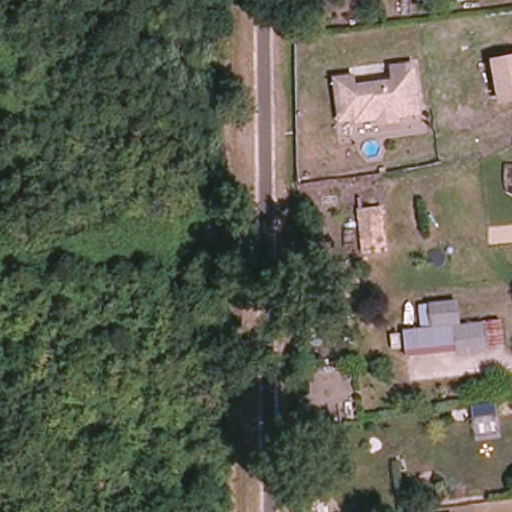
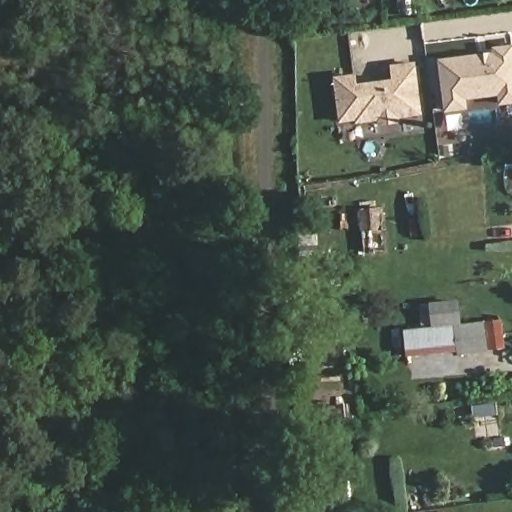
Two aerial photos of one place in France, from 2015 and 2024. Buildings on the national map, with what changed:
new [(492,48),(512,45),(512,104),(498,106),(498,97),(465,100),(466,111),(444,114),(437,59),(492,51),(492,48)]
demolished [(498,76),(496,60),(512,56),(512,98),(510,99),(510,104),(504,106),(503,101),(494,102),(489,78),(498,76)]
unchanged [(357,123),(357,120),(340,122),(335,80),(354,77),(355,87),(394,81),(392,67),(414,64),(421,114),(399,116),(380,120),(357,123)]
unchanged [(362,253),(362,206),(386,204),(390,253),(362,253)]
unchanged [(405,331),(421,328),(420,304),(460,301),(462,321),(503,320),(504,348),(456,355),(455,346),(406,352),(405,331)]

